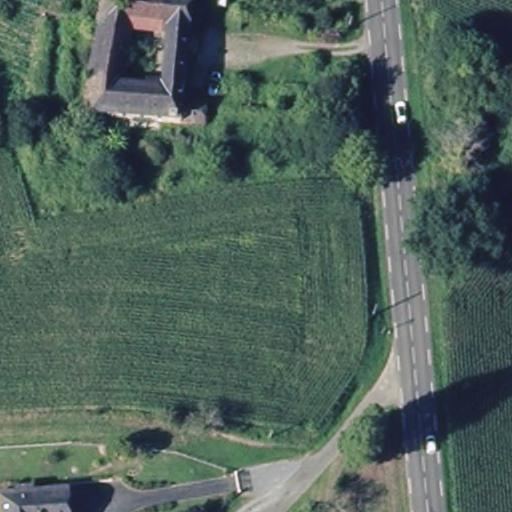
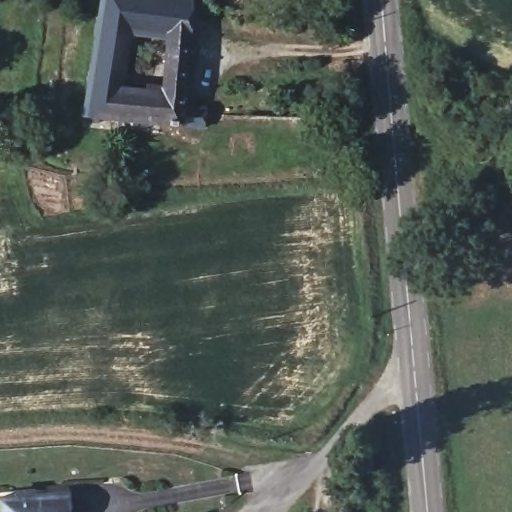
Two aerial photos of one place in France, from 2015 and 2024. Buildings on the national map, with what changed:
unchanged [(105,0),(172,0),(194,6),(182,111),(209,117),(205,136),(85,109),(105,0)]
unchanged [(66,494),(67,512),(0,512),(0,497),(66,494)]

